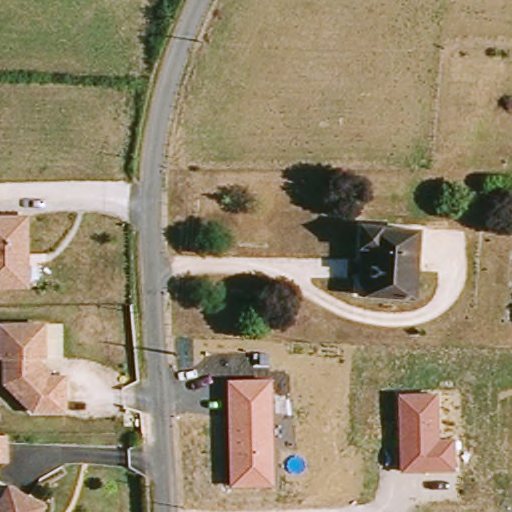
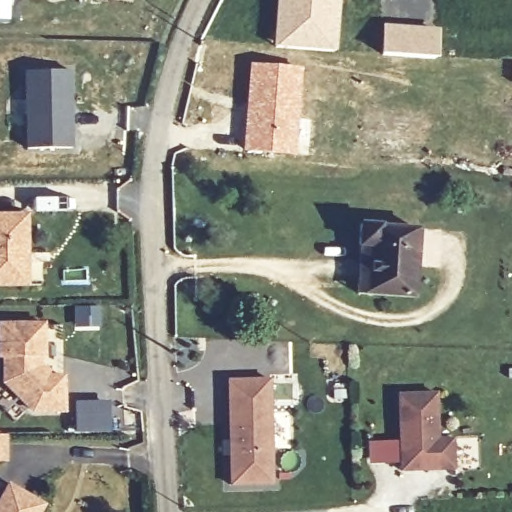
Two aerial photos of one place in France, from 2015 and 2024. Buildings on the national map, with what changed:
new [(0,21),(0,0),(12,0),(10,21),(0,21)]
new [(119,0),(133,0),(133,1),(119,0)]
new [(272,47),(276,0),(339,0),(336,52),(272,47)]
new [(439,29),(437,59),(380,56),(382,24),(439,29)]
new [(249,62),(302,66),(300,154),(242,150),(249,62)]
new [(75,67),(75,147),(25,148),(23,69),(75,67)]
unchanged [(31,285),(0,286),(0,213),(28,211),(31,285)]
unchanged [(417,298),(359,297),(359,233),(418,234),(417,298)]
unchanged [(42,357),(38,357),(38,367),(46,377),(62,377),(62,411),(32,411),(4,384),(2,358),(0,358),(0,325),(42,325),(42,357)]
unchanged [(274,486),(230,488),(226,379),(270,377),(274,486)]
unchanged [(437,392),(438,437),(456,437),(457,469),(400,472),(397,394),(437,392)]
unchanged [(12,461),(0,461),(0,433),(10,432),(12,461)]
unchanged [(42,505),(38,512),(0,512),(0,497),(7,485),(42,505)]

